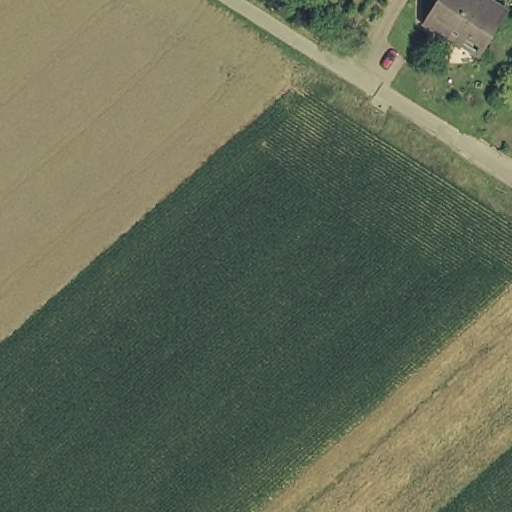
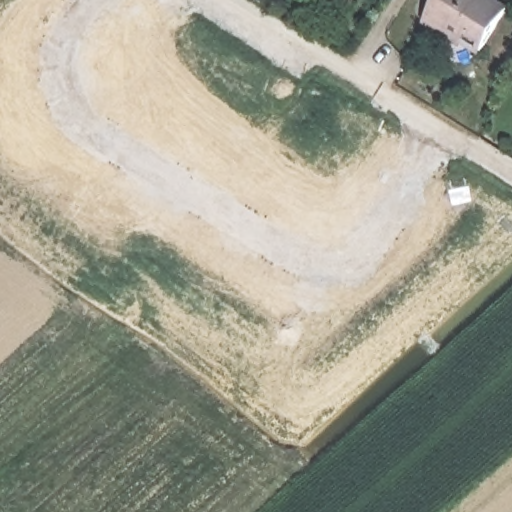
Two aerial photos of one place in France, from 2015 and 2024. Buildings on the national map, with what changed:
unchanged [(462,41),(464,39),(431,18),(441,0),(492,0),(509,11),(482,54),(462,41)]

